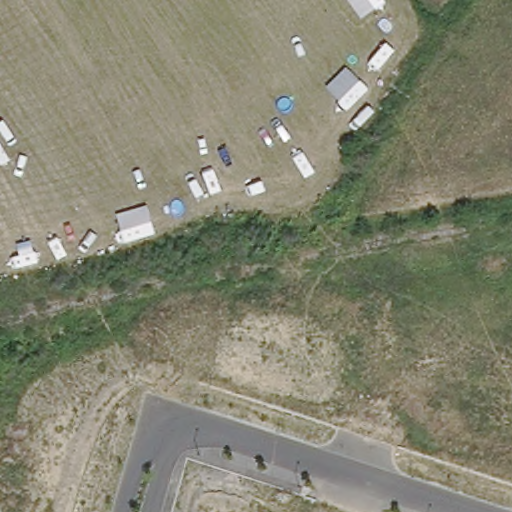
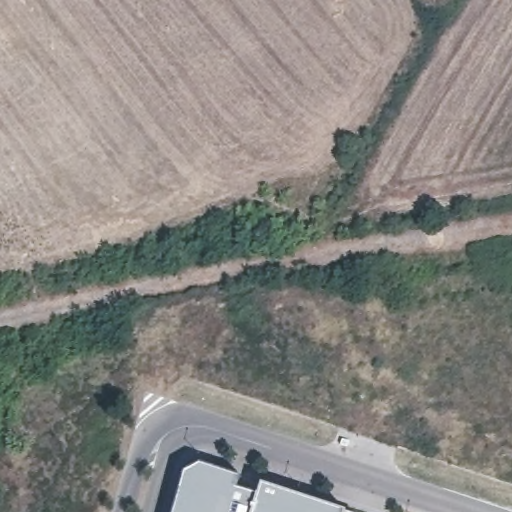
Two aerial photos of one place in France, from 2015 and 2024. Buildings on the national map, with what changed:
new [(183,470),(196,460),(241,475),(237,487),(230,512),(171,512),(183,470)]
new [(257,493),(261,481),(347,510),(346,512),(251,512),(257,493)]
new [(237,487),(257,493),(251,512),(230,512),(237,487)]

